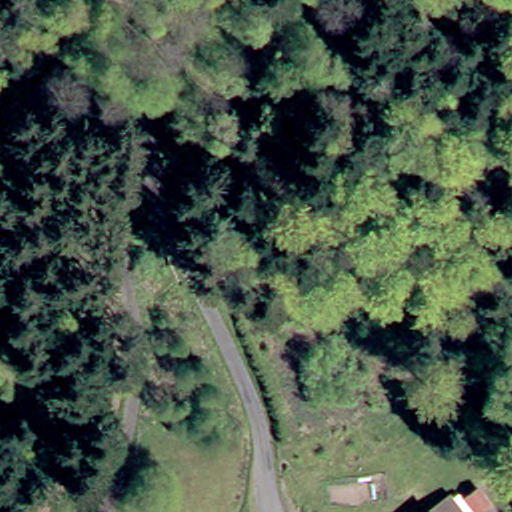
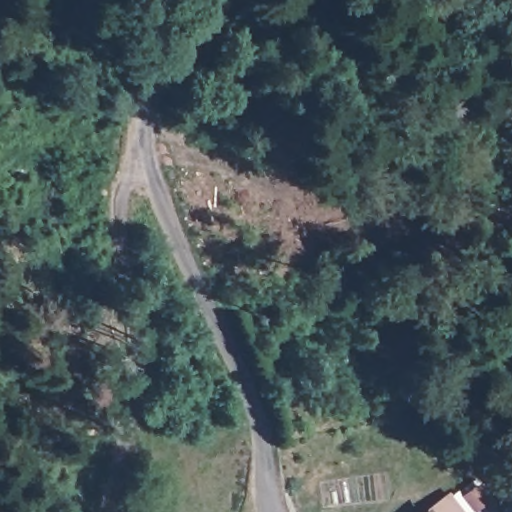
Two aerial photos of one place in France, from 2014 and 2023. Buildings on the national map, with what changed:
unchanged [(455,480),(475,506),(468,512),(434,512),(427,502),(455,480)]
unchanged [(427,502),(434,512),(414,512),(427,502)]

